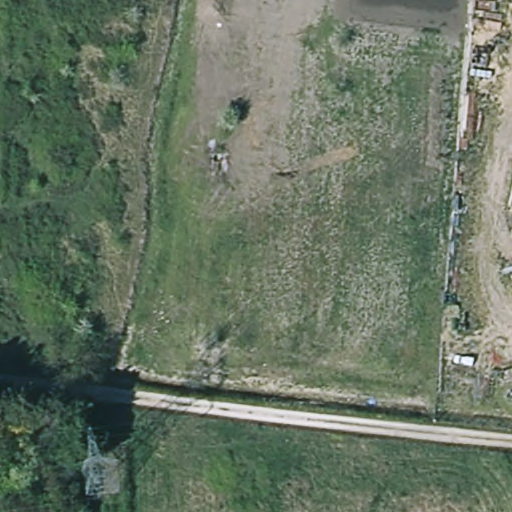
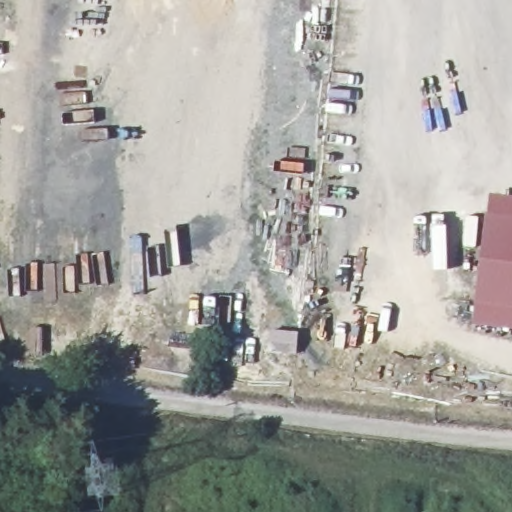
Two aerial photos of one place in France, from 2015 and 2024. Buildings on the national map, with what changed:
new [(490,194),(512,197),(512,329),(473,325),(490,194)]

